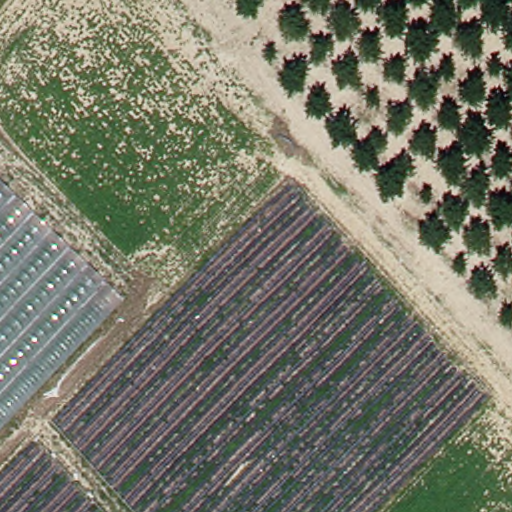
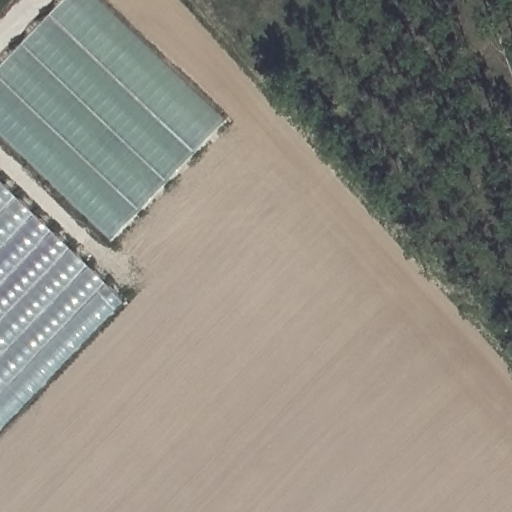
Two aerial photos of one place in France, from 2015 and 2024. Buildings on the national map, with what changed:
new [(99,0),(225,120),(111,239),(0,133),(0,66),(63,0),(99,0)]
new [(122,302),(0,431),(0,186),(122,302)]

